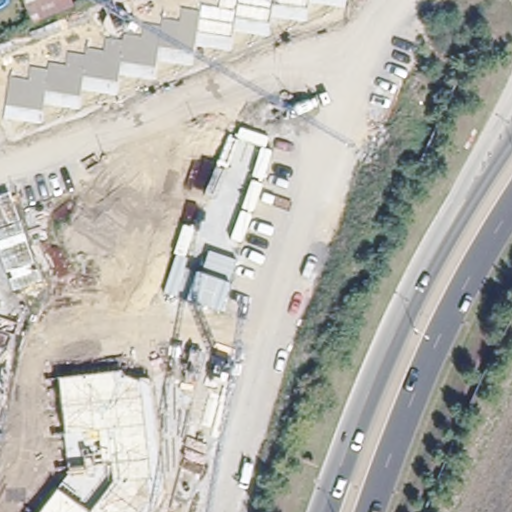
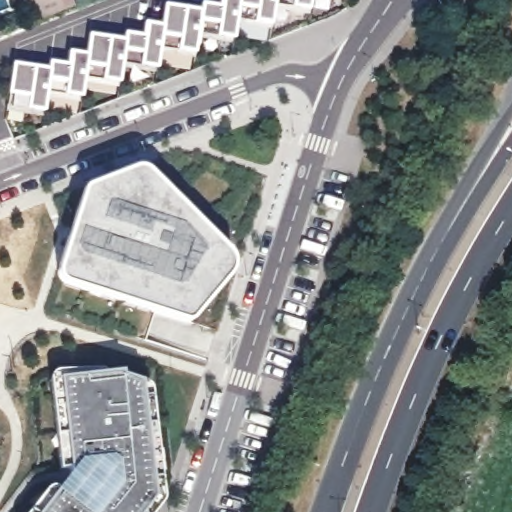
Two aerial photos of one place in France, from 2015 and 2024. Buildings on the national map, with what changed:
new [(49,68),(49,61),(66,63),(69,52),(87,56),(91,34),(120,39),(122,33),(143,35),(146,22),(162,24),(165,3),(199,9),(200,1),(218,4),(219,0),(312,0),(310,9),(276,3),(273,25),(239,18),(235,39),(200,32),(196,54),(162,48),(159,68),(126,61),(122,84),(86,77),(83,99),(48,94),(45,112),(8,106),(15,64),(49,68)]
unchanged [(77,2),(33,19),(25,0),(76,0),(77,2)]
new [(135,167),(145,170),(231,256),(234,265),(232,271),(190,321),(61,279),(59,273),(59,267),(85,186),(135,167)]
new [(56,487),(68,471),(60,465),(51,376),(55,371),(61,370),(121,370),(123,374),(141,381),(141,384),(148,384),(151,391),(163,499),(161,505),(155,512),(28,512),(50,486),(56,487)]

